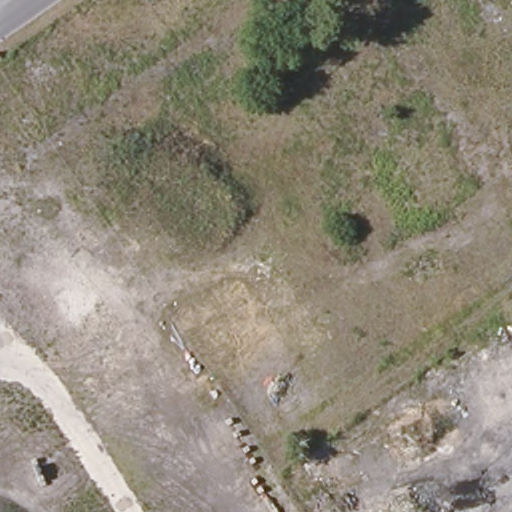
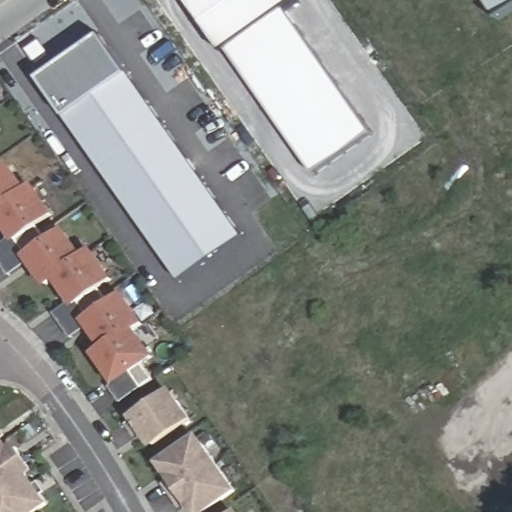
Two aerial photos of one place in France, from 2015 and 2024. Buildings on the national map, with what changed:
new [(313,173),(226,49),(222,52),(186,0),(300,0),(301,2),(287,11),(372,132),(313,173)]
new [(484,0),(512,0),(512,12),(497,21),(484,0)]
new [(240,236),(178,278),(37,76),(99,33),(240,236)]
new [(1,148),(0,149),(0,147),(1,148)]
new [(10,163),(29,189),(36,183),(57,214),(41,226),(51,240),(67,228),(86,255),(94,249),(116,280),(103,289),(112,302),(125,292),(147,324),(138,331),(157,356),(146,364),(154,380),(121,403),(111,388),(113,386),(99,367),(102,365),(94,354),(104,348),(100,342),(97,344),(86,329),(72,339),(56,314),(70,306),(59,289),(62,287),(58,280),(47,288),(41,278),(38,280),(27,265),(9,276),(0,261),(0,247),(11,240),(2,226),(4,225),(0,219),(0,171),(10,163)]
new [(126,424),(133,419),(130,416),(173,388),(194,420),(153,449),(142,433),(135,437),(126,424)]
new [(31,477),(51,505),(41,512),(0,512),(0,431),(11,448),(18,443),(38,472),(31,477)]
new [(170,479),(158,462),(199,434),(240,492),(211,512),(192,512),(187,505),(180,508),(163,483),(170,479)]
new [(239,509),(241,512),(235,512),(239,509)]

